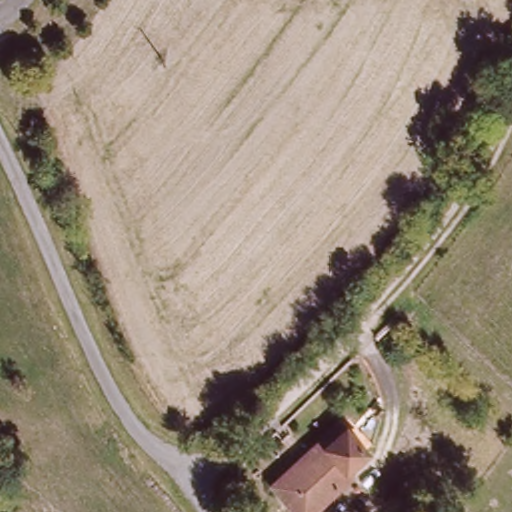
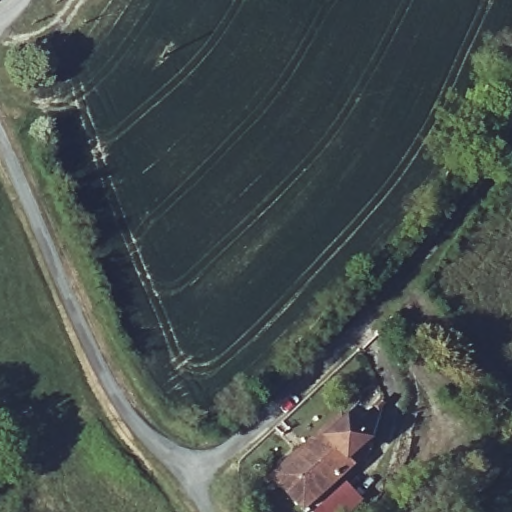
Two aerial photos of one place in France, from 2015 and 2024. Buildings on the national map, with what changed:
unchanged [(364,447),(344,463),(348,470),(305,511),(273,477),(295,456),(301,461),(344,423),(364,447)]

